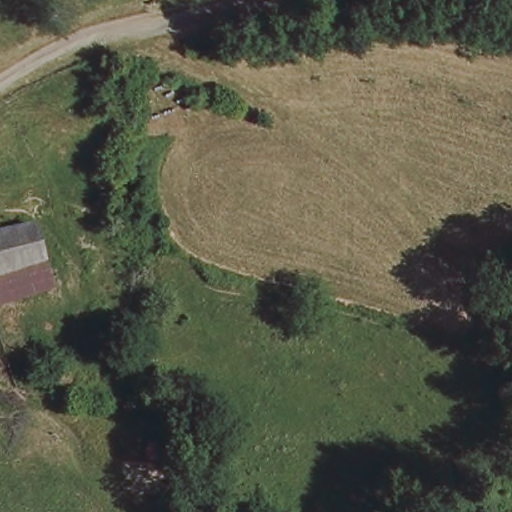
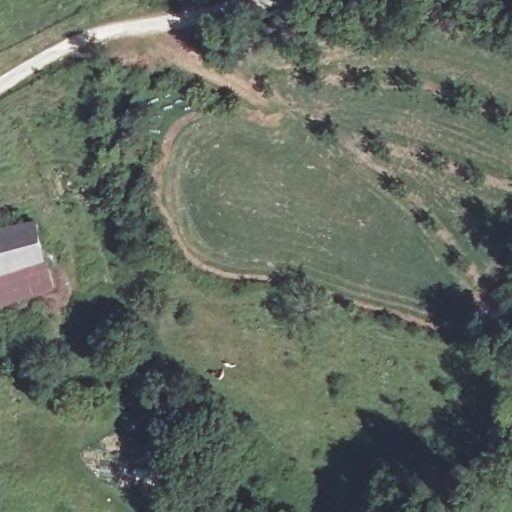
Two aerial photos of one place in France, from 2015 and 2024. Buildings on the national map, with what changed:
unchanged [(53,286),(0,304),(0,229),(34,222),(53,286)]
unchanged [(482,335),(512,290),(512,354),(482,335)]

